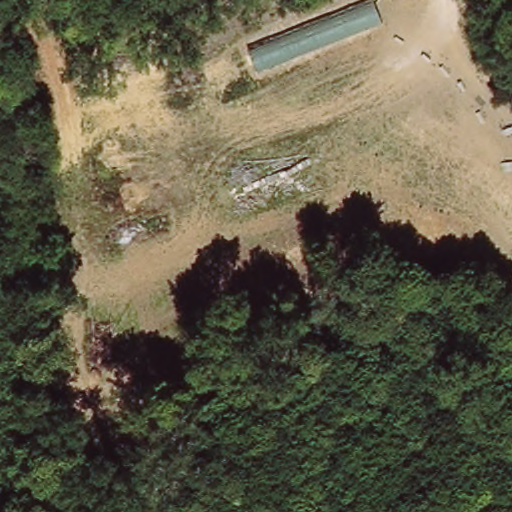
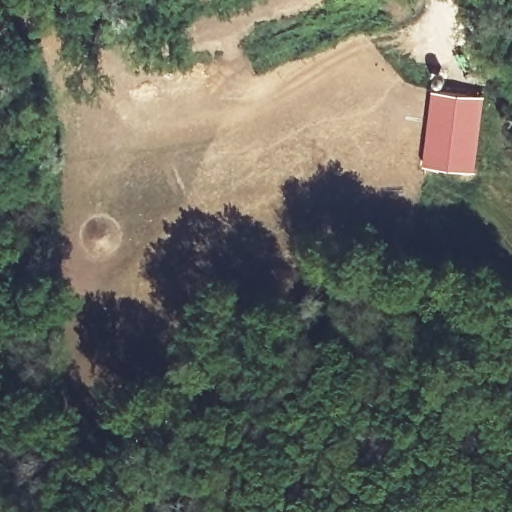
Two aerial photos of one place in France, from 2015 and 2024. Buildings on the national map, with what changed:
new [(422,165),(431,91),(484,97),(474,171),(422,165)]

